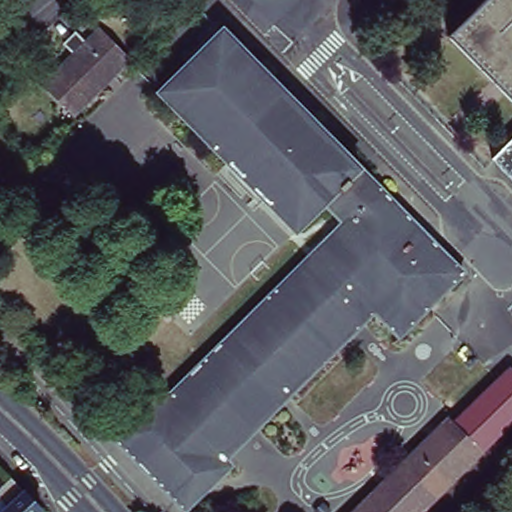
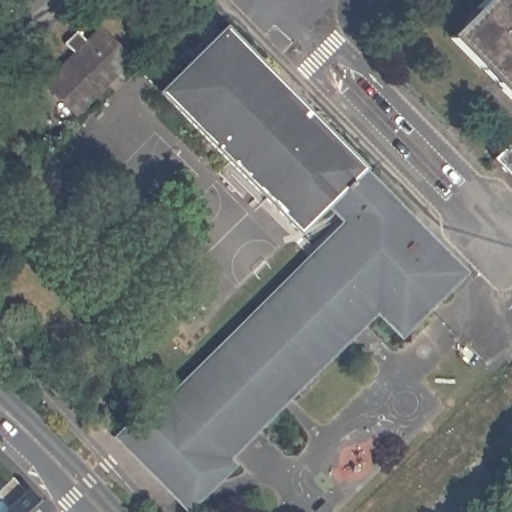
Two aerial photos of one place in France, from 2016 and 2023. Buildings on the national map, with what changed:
unchanged [(487,0),(512,0),(512,100),(450,36),(487,0)]
unchanged [(43,76),(72,48),(62,39),(75,26),(84,36),(97,24),(100,27),(126,53),(130,57),(115,73),(105,81),(76,110),(72,106),(46,79),(43,76)]
unchanged [(230,465),(184,510),(114,437),(159,393),(165,400),(344,222),(324,202),(296,230),(159,92),(220,31),(223,28),(359,168),(357,170),(376,190),(378,187),(463,273),(426,308),(399,335),(374,310),(242,442),(224,460),(230,465)]
unchanged [(512,178),(493,159),(512,141),(512,178)]
demolished [(353,512),(448,418),(452,423),(507,370),(512,375),(512,420),(420,512),(353,512)]
unchanged [(16,479),(46,510),(44,512),(0,512),(0,495),(16,479)]
unchanged [(331,511),(331,512),(315,512),(313,510),(322,502),(331,511)]

